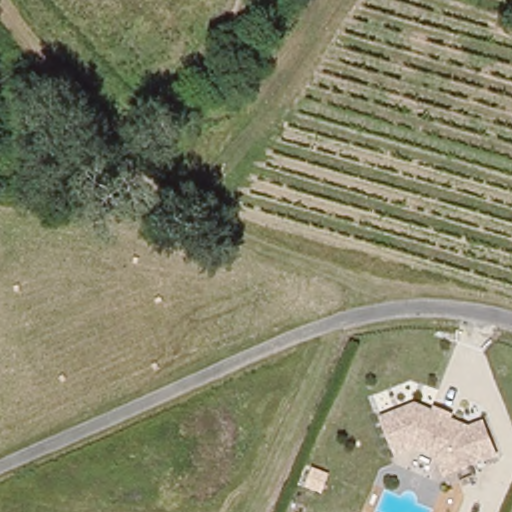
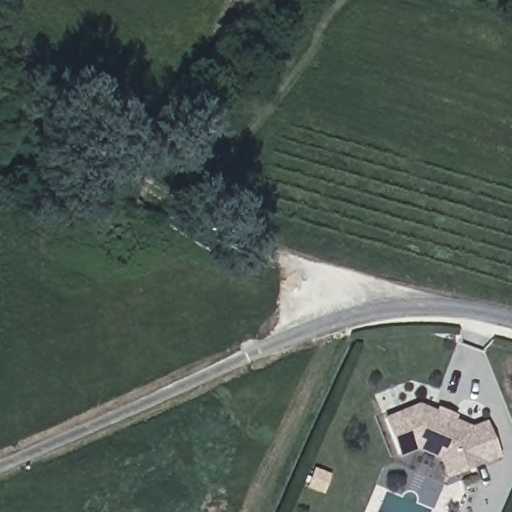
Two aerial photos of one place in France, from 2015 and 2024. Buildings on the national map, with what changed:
unchanged [(446,455),(421,444),(402,452),(387,417),(421,402),(474,425),(489,418),(503,452),(469,466),(453,473),(446,455)]

